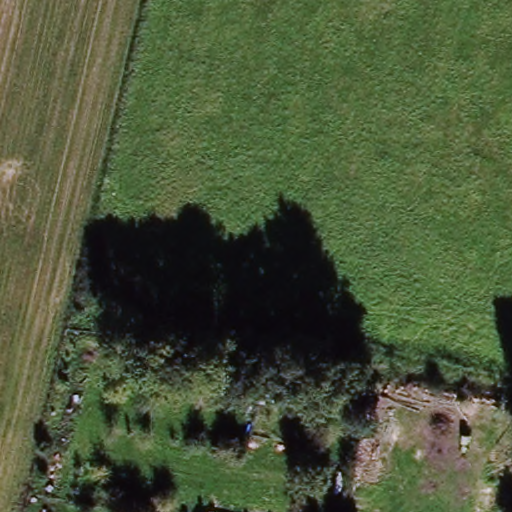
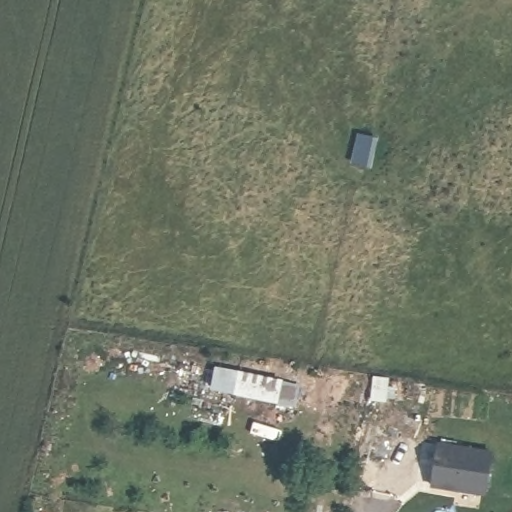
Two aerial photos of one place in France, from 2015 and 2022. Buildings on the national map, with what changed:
new [(495,452),(487,495),(431,487),(439,442),(495,452)]

